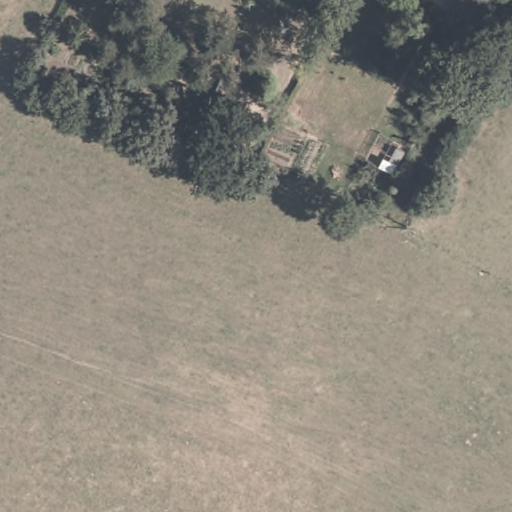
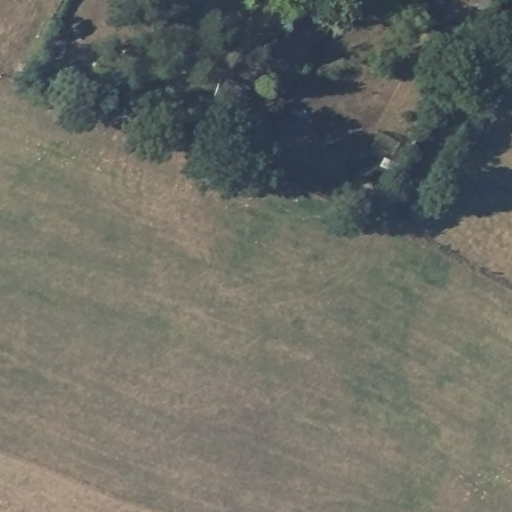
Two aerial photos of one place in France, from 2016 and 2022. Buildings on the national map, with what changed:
unchanged [(482,2),(478,0),(483,0),(482,2)]
unchanged [(223,104),(253,117),(242,142),(212,130),(223,104)]

